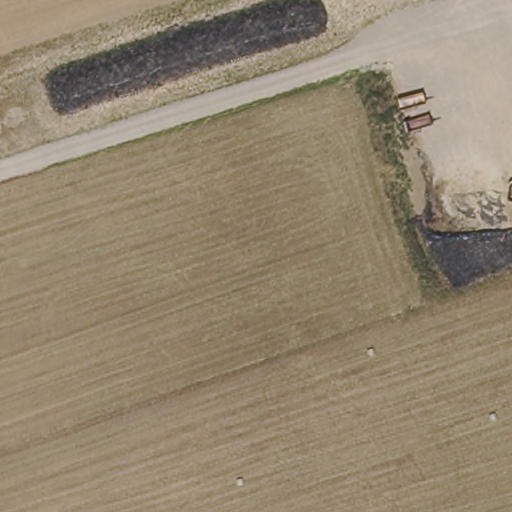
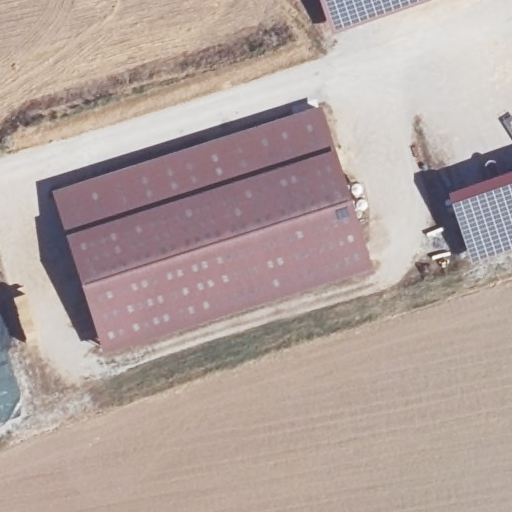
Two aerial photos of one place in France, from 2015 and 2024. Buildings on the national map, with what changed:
new [(329,34),(318,0),(431,0),(329,34)]
new [(101,352),(69,235),(54,189),(322,106),(334,149),(371,267),(101,352)]
new [(472,260),(447,191),(512,169),(512,247),(472,260)]

